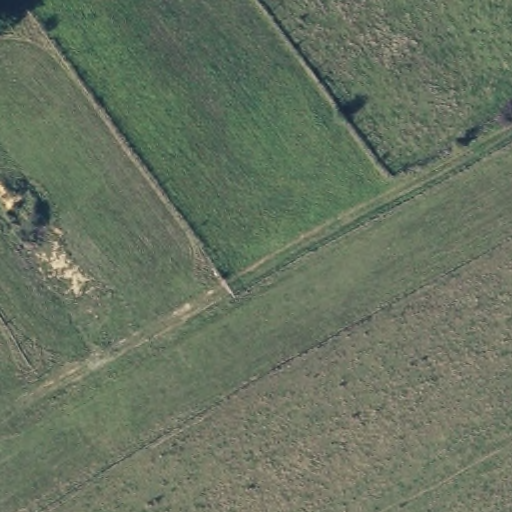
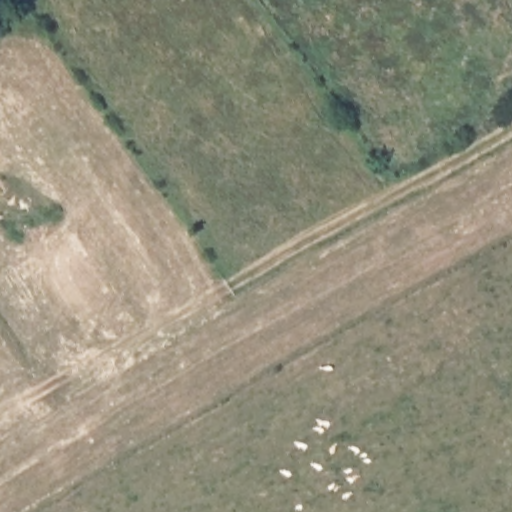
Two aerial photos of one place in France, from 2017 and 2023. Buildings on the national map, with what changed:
[]

